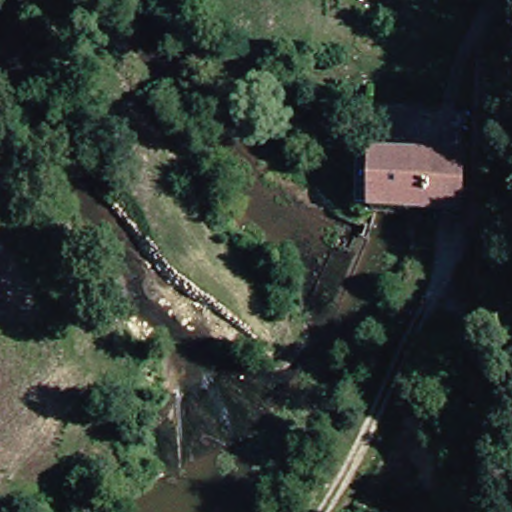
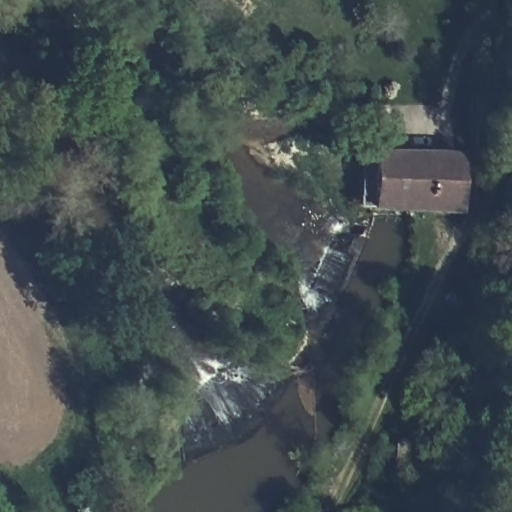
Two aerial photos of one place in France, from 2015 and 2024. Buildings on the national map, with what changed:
unchanged [(467,156),(462,212),(414,210),(381,209),(384,152),(424,152),(467,156)]

